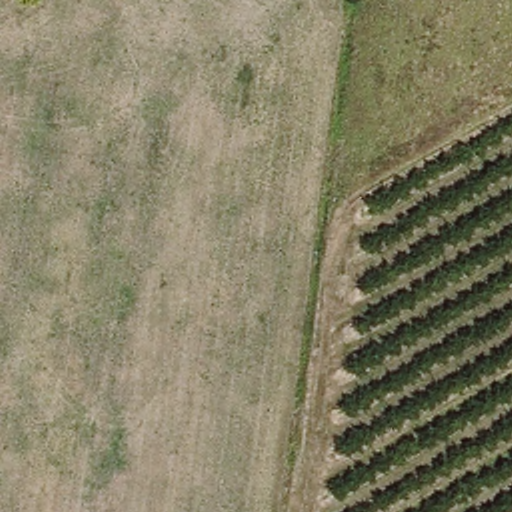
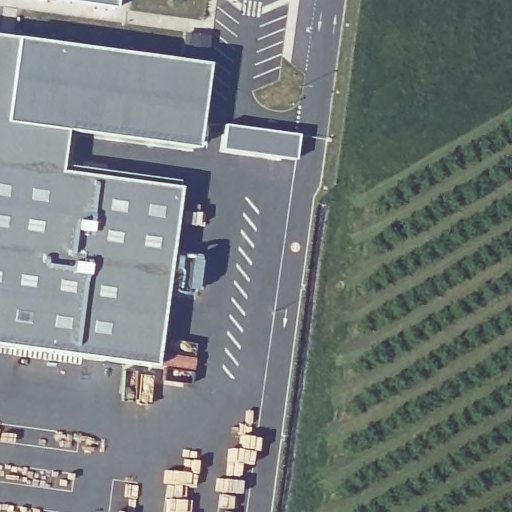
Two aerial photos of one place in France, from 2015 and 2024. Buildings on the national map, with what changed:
new [(113,12),(28,0),(115,0),(113,12)]
new [(192,154),(74,137),(68,178),(175,194),(150,371),(0,350),(0,41),(204,70),(192,154)]
new [(223,130),(296,142),(292,166),(220,155),(223,130)]

